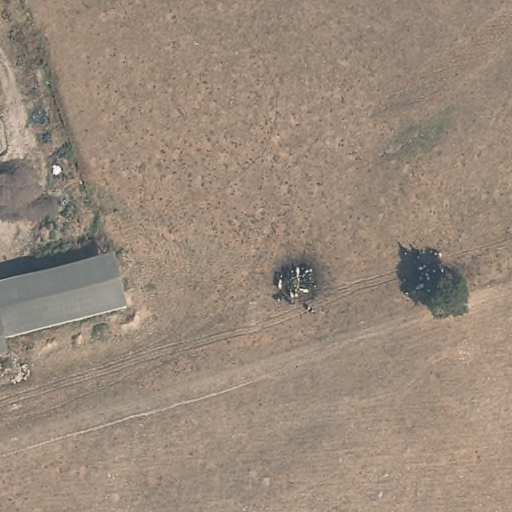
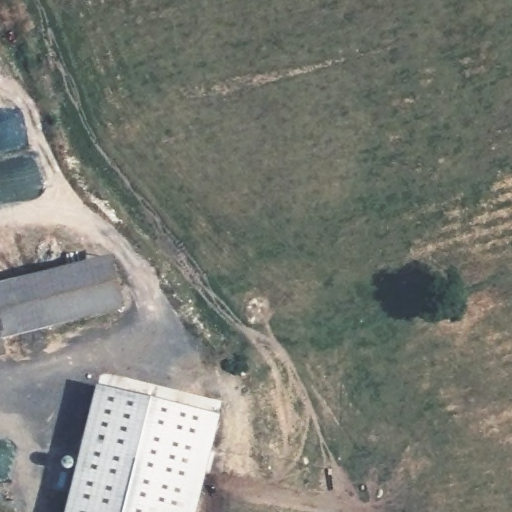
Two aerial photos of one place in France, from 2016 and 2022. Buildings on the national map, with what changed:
unchanged [(107,254),(122,303),(0,337),(0,284),(107,254)]
new [(219,416),(195,512),(63,512),(94,385),(219,416)]

